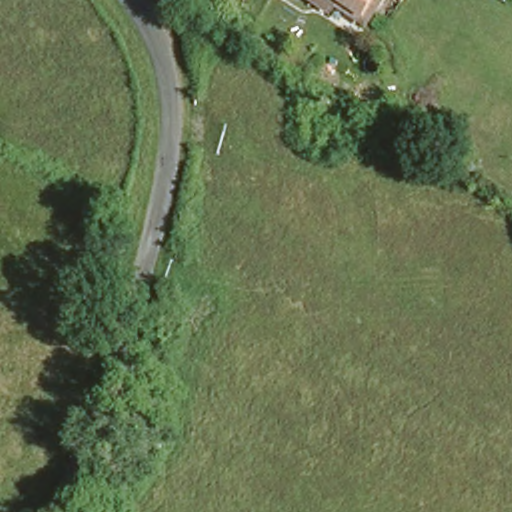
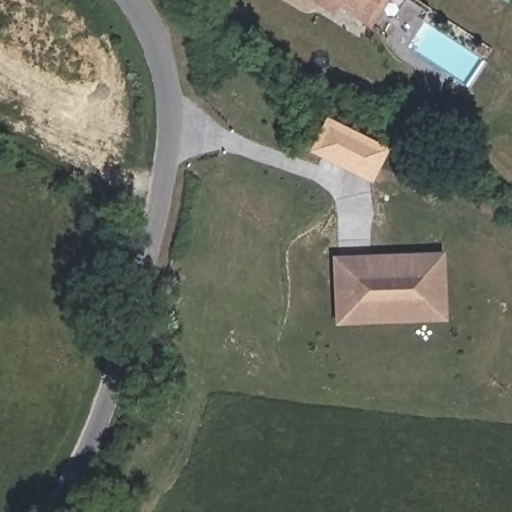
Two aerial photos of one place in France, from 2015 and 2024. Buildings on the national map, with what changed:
unchanged [(329,0),(334,0),(333,2),(329,0)]
unchanged [(364,0),(377,0),(371,11),(352,0),(363,0),(364,0)]
new [(327,116),(389,147),(372,181),(308,151),(327,116)]
new [(445,252),(448,321),(336,326),(333,256),(445,252)]

